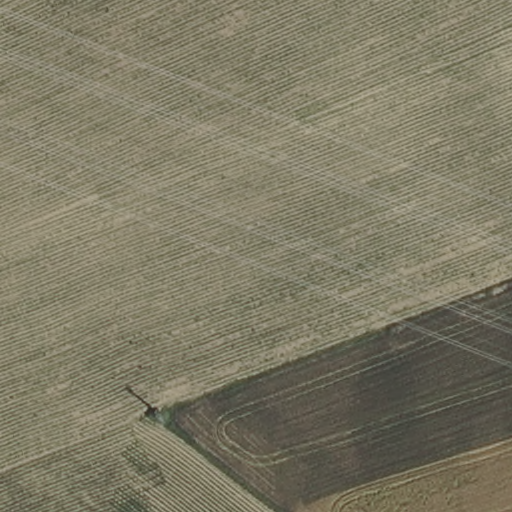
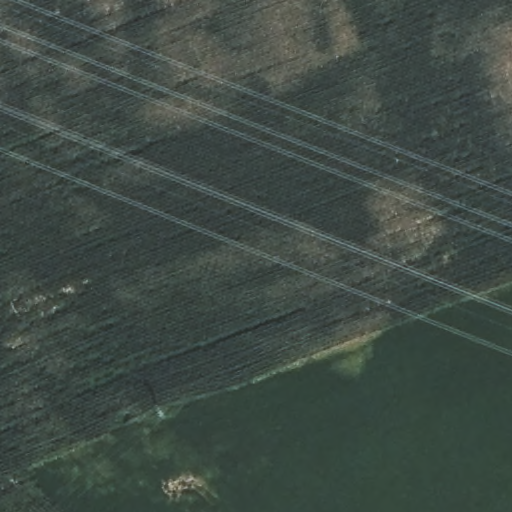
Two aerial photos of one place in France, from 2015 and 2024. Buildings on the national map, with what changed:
[]

